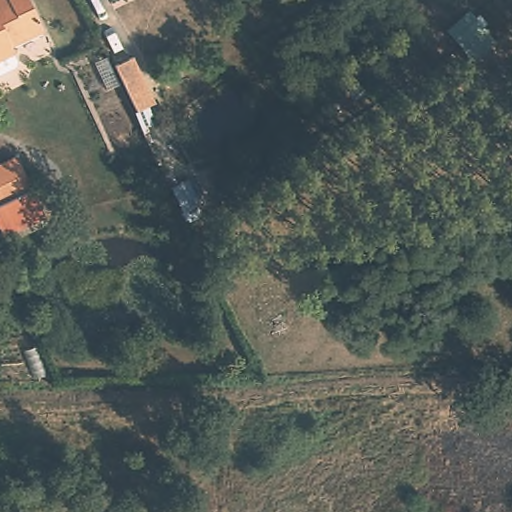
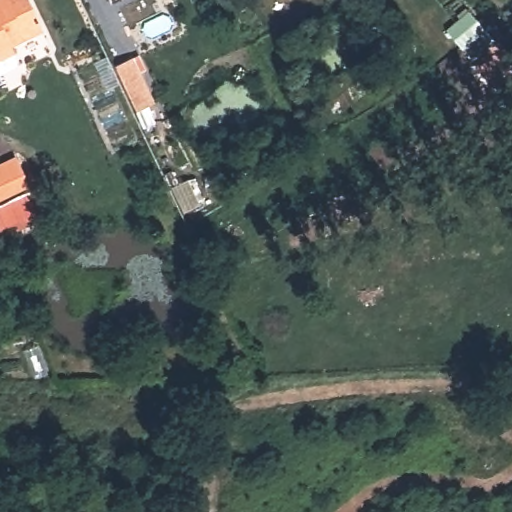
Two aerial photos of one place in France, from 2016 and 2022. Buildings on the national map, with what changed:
unchanged [(42,27),(10,42),(14,49),(12,49),(16,57),(14,62),(0,69),(0,0),(29,0),(42,27)]
unchanged [(145,117),(143,118),(138,108),(140,107),(119,61),(137,53),(158,99),(147,104),(152,114),(145,117)]
unchanged [(0,205),(0,164),(15,157),(31,190),(0,205)]
unchanged [(182,212),(170,188),(186,180),(198,204),(182,212)]
unchanged [(43,216),(0,236),(0,205),(31,190),(43,216)]

